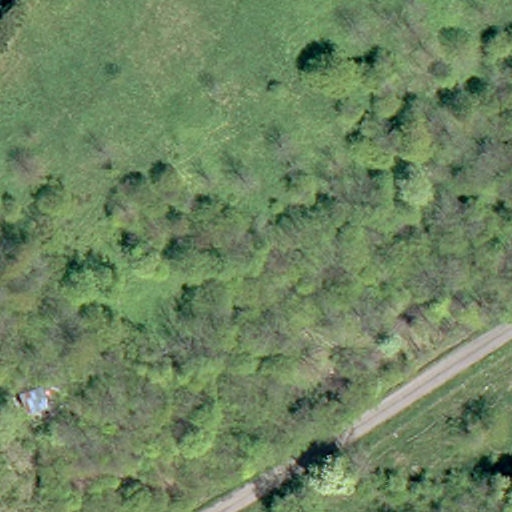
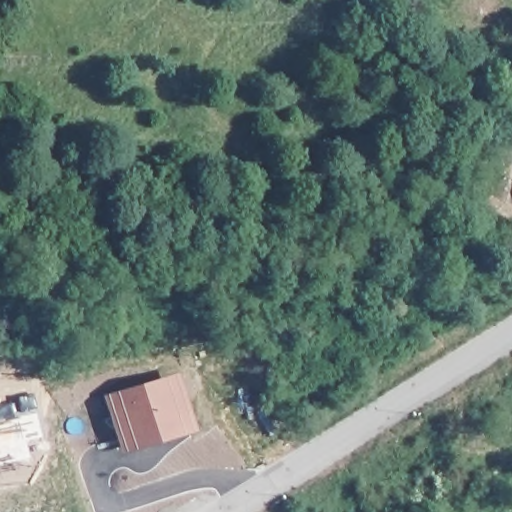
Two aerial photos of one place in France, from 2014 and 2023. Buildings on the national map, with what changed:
new [(130,446),(127,437),(125,430),(97,438),(86,403),(114,394),(174,376),(187,419),(190,427),(130,446)]

